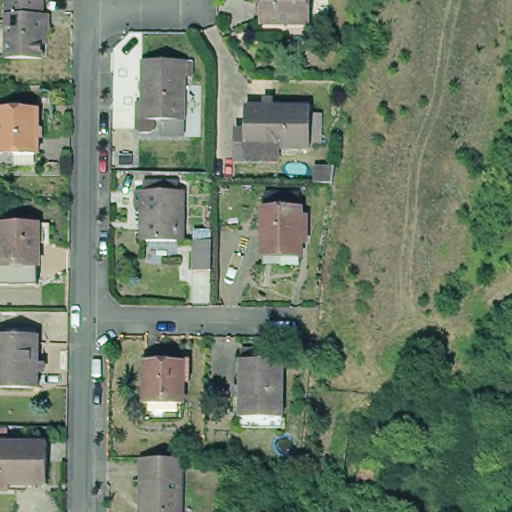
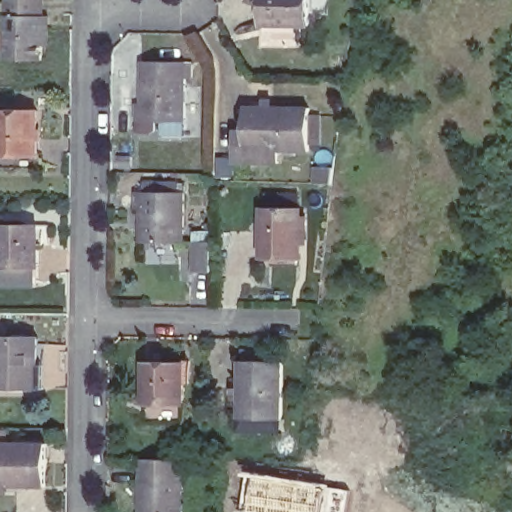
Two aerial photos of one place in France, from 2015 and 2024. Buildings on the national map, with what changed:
unchanged [(7,20),(7,0),(44,0),(43,21),(50,21),(49,49),(43,49),(43,64),(7,63),(7,20)]
unchanged [(260,30),(260,18),(260,0),(308,0),(308,18),(305,18),(305,31),(260,30)]
unchanged [(145,108),(145,67),(188,67),(187,125),(139,125),(139,109),(145,108)]
unchanged [(248,100),(313,101),(312,144),(280,144),(280,155),(237,154),(238,125),(248,125),(248,100)]
unchanged [(0,103),(40,104),(40,149),(40,161),(0,161),(0,103)]
unchanged [(144,208),(138,208),(138,192),(187,193),(187,241),(144,241),(144,208)]
unchanged [(265,264),(265,251),(266,206),(270,206),(270,193),(302,193),(300,206),(304,207),(304,216),(310,216),(310,238),(304,238),(304,252),(304,265),(285,264),(265,264)]
unchanged [(0,223),(35,223),(47,223),(47,231),(35,231),(36,266),(36,278),(0,278),(0,223)]
unchanged [(210,270),(193,270),(193,240),(210,240),(210,270)]
unchanged [(0,387),(0,335),(35,335),(35,363),(35,387),(29,387),(0,387)]
unchanged [(285,417),(242,416),(242,358),(243,358),(243,348),(275,348),(275,358),(285,359),(285,417)]
unchanged [(137,403),(137,361),(175,361),(182,361),(182,382),(175,382),(175,404),(137,403)]
unchanged [(0,484),(0,441),(13,441),(46,442),(45,484),(0,484)]
unchanged [(180,463),(180,512),(139,512),(140,462),(180,463)]
new [(346,512),(259,512),(240,508),(247,470),(350,487),(346,512)]

